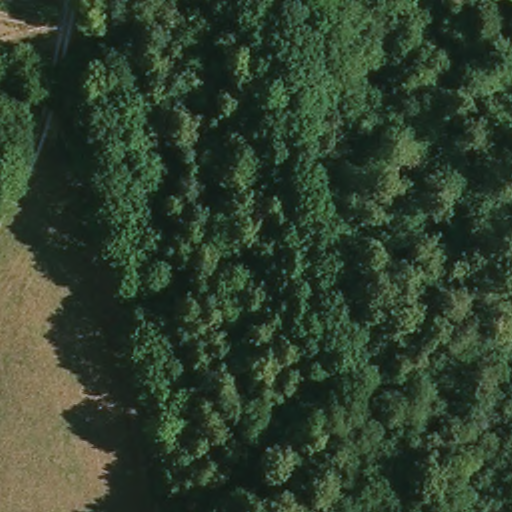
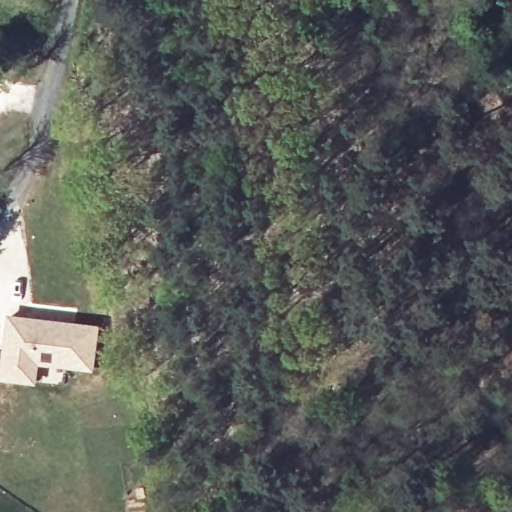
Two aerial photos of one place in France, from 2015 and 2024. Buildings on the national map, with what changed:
new [(8,313),(101,324),(94,371),(41,363),(37,384),(0,379),(8,313)]

